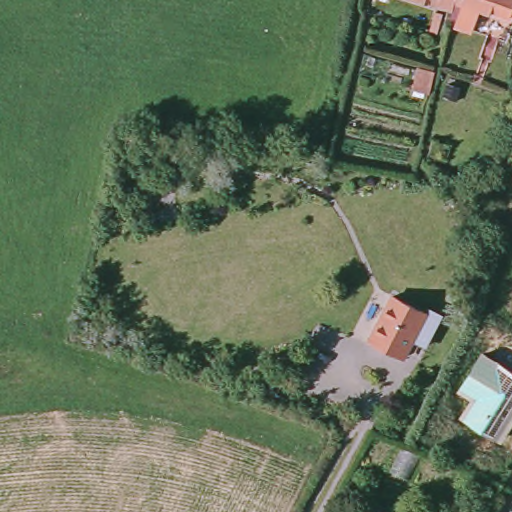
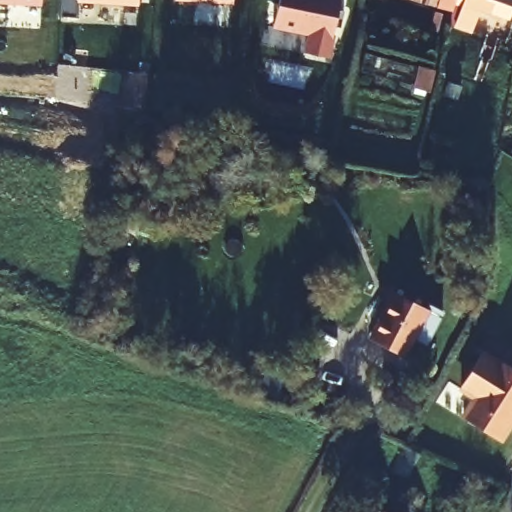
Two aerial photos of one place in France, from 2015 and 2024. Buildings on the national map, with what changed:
new [(42,0),(42,6),(0,3),(0,0),(42,0)]
new [(137,0),(137,6),(73,1),(73,0),(137,0)]
new [(233,0),(233,4),(173,0),(233,0)]
new [(308,35),(272,28),(279,0),(341,0),(330,57),(304,51),(308,35)]
unchanged [(433,0),(439,0),(438,2),(433,0)]
unchanged [(512,0),(512,6),(510,13),(480,3),(471,26),(450,17),(454,0),(512,0)]
unchanged [(436,311),(420,342),(406,335),(397,352),(363,336),(386,291),(420,308),(422,303),(436,311)]
unchanged [(512,428),(504,441),(462,417),(473,400),(458,391),(482,350),(512,368),(512,428)]
unchanged [(378,507),(388,512),(376,512),(378,507)]

